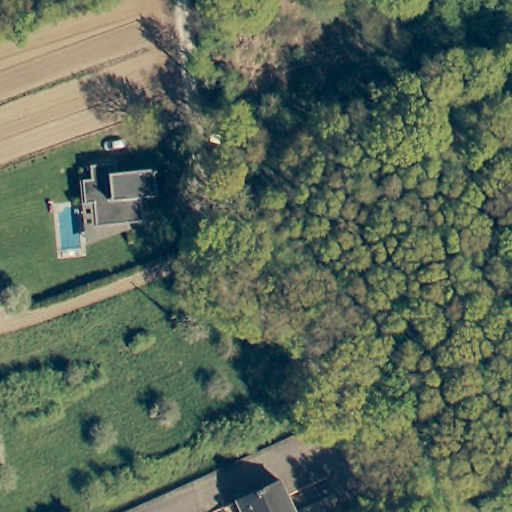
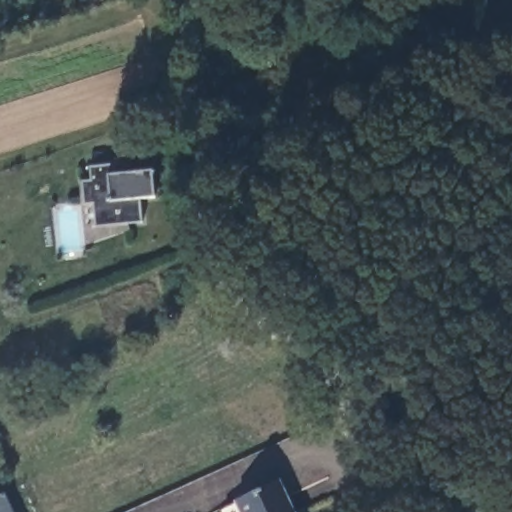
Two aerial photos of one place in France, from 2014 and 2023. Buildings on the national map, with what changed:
unchanged [(85,217),(84,195),(93,194),(91,180),(116,178),(117,187),(154,184),(156,210),(141,212),(143,235),(96,240),(95,217),(85,217)]
unchanged [(290,512),(237,512),(232,501),(276,481),(290,512)]
new [(1,493),(10,512),(0,512),(0,493),(1,493)]

